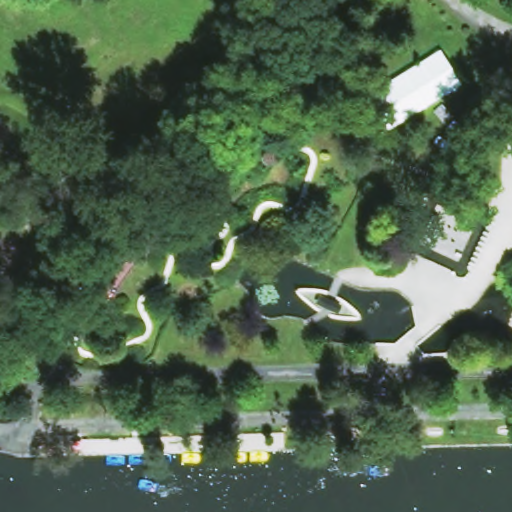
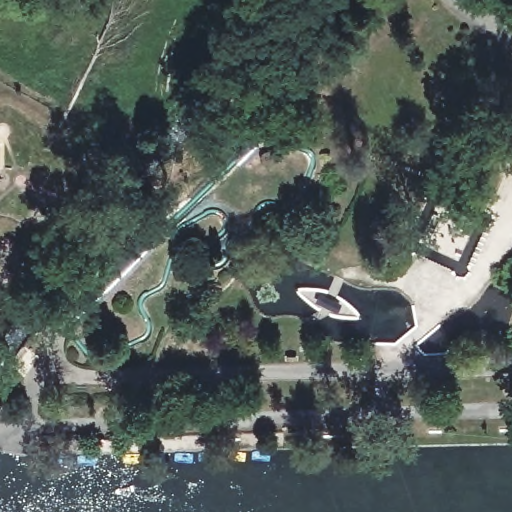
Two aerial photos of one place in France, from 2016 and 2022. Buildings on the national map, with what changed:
unchanged [(461,86),(377,137),(358,101),(439,50),(461,86)]

